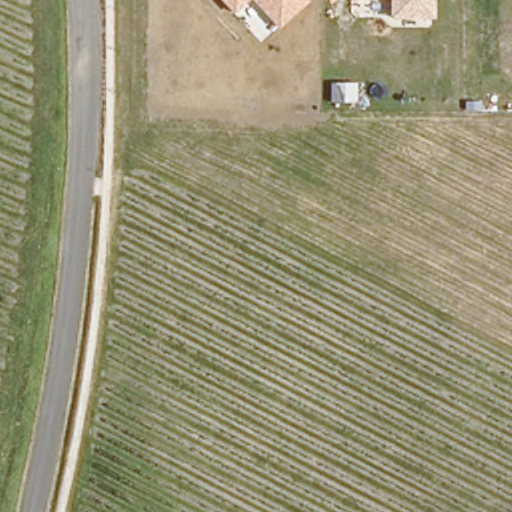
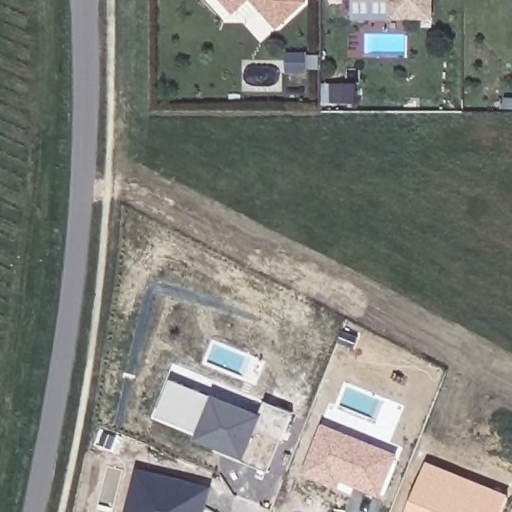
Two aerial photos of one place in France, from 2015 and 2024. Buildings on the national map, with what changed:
unchanged [(234,14),(221,0),(249,0),(234,14)]
unchanged [(308,1),(277,28),(251,0),(307,0),(308,1)]
unchanged [(390,18),(390,0),(433,0),(433,19),(390,18)]
new [(267,403),(293,413),(270,471),(194,440),(197,432),(156,416),(170,380),(211,396),(211,395),(262,413),(267,403)]
new [(382,497),(340,487),(303,473),(322,423),(400,454),(382,497)]
new [(407,512),(426,461),(509,494),(501,512),(407,512)]
new [(213,486),(207,512),(124,512),(135,467),(213,486)]

